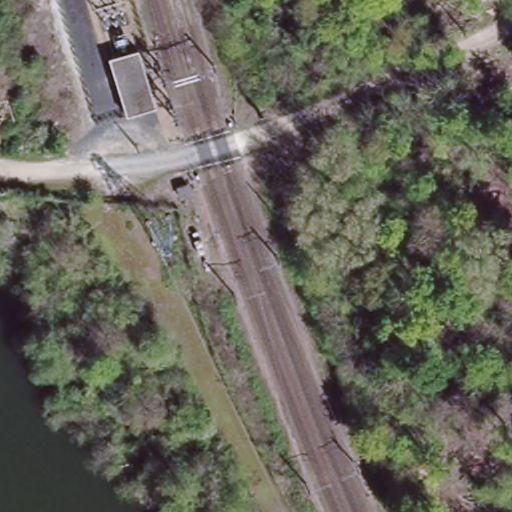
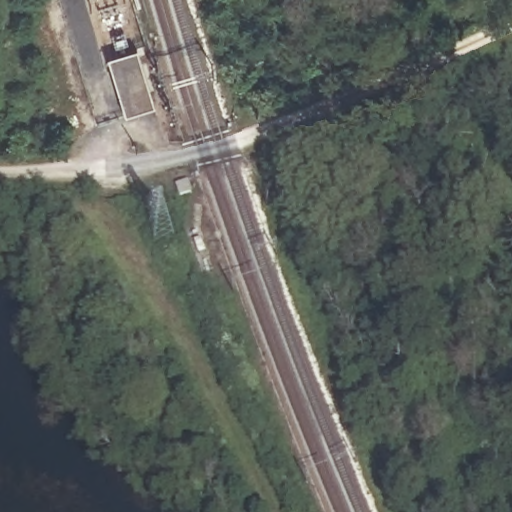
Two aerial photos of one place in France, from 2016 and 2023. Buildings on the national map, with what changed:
unchanged [(127,112),(123,100),(110,57),(141,48),(152,92),(155,103),(127,112)]

